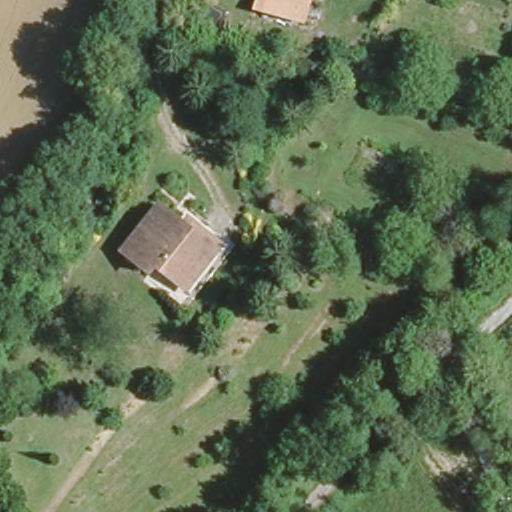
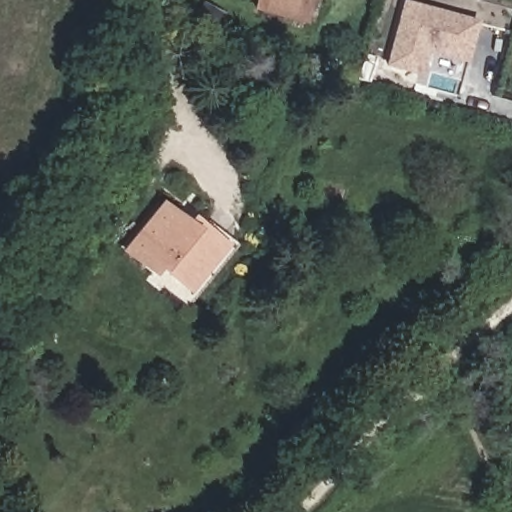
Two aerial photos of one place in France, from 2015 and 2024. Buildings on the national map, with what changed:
unchanged [(303,0),(297,18),(250,2),(251,0),(303,0)]
new [(470,64),(427,53),(421,77),(384,67),(402,0),(479,20),(470,64)]
unchanged [(162,196),(187,217),(192,212),(218,234),(182,277),(156,254),(149,262),(125,241),(162,196)]
unchanged [(156,254),(182,277),(218,234),(192,212),(202,199),(242,232),(185,301),(144,268),(149,262),(156,254)]

